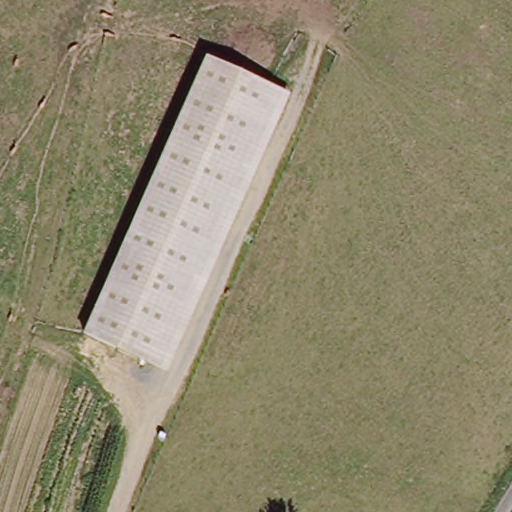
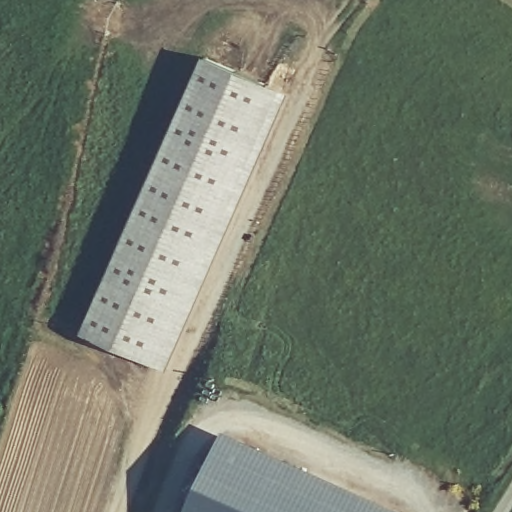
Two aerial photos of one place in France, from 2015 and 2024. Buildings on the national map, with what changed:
unchanged [(87,328),(200,68),(206,53),(270,80),(260,103),(150,356),(87,328)]
unchanged [(290,89),(279,114),(170,365),(150,356),(260,103),(270,80),(290,89)]
new [(191,512),(229,429),(405,512),(191,512)]

